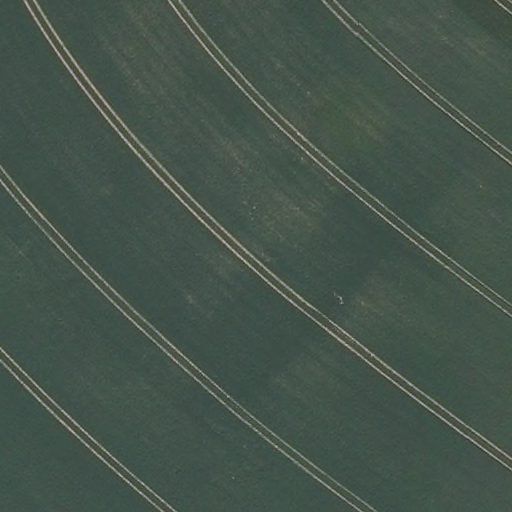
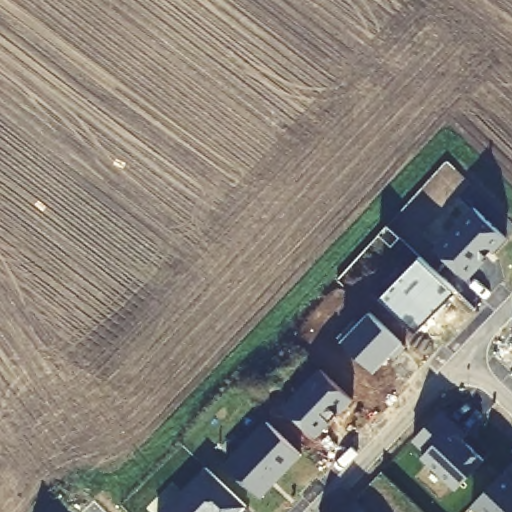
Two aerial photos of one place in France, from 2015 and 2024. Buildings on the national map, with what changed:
new [(433,248),(474,206),(508,238),(468,279),(433,248)]
new [(383,296),(421,257),(457,291),(418,331),(383,296)]
new [(342,341),(371,311),(404,342),(375,372),(342,341)]
new [(283,407),(321,368),(354,400),(316,437),(283,407)]
new [(421,457),(426,452),(413,440),(442,410),(468,434),(463,439),(484,460),(457,490),(421,457)]
new [(224,464),(266,421),(302,455),(262,497),(224,464)]
new [(205,467),(246,505),(240,512),(162,512),(205,467)]
new [(473,506),(506,472),(512,478),(512,512),(479,512),(473,506)]

